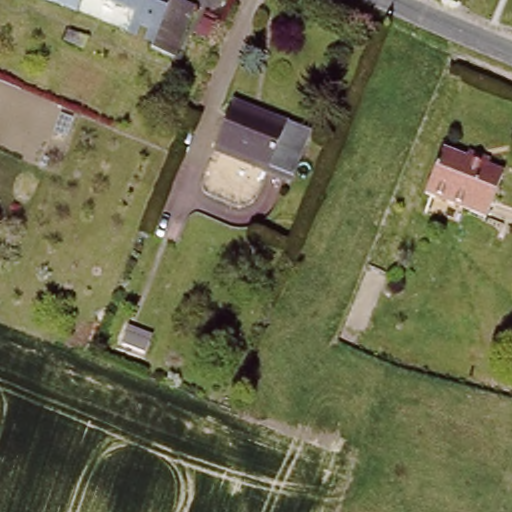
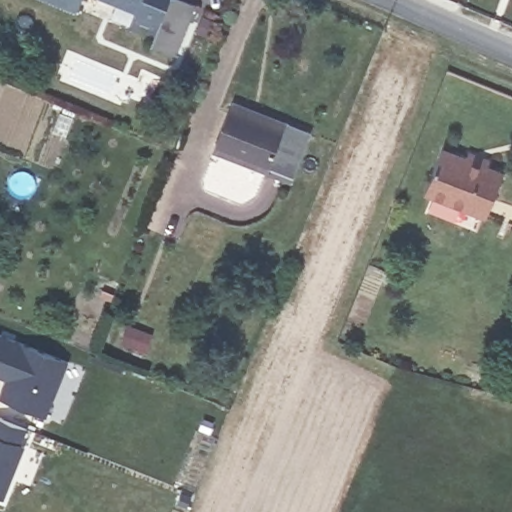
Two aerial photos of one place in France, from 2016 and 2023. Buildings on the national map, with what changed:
unchanged [(49,0),(80,0),(75,12),(49,0)]
unchanged [(109,0),(120,0),(118,4),(109,0)]
unchanged [(172,0),(157,41),(129,30),(135,11),(118,4),(120,0),(172,0)]
unchanged [(178,0),(197,7),(177,57),(153,48),(157,41),(172,0),(178,0)]
unchanged [(214,150),(231,108),(310,137),(293,179),(214,150)]
unchanged [(425,191),(440,148),(479,164),(462,206),(425,191)]
unchanged [(479,164),(503,172),(486,216),(462,206),(479,164)]
new [(0,400),(0,394),(5,378),(0,376),(0,336),(68,364),(47,417),(0,400)]
new [(25,448),(5,500),(0,498),(0,417),(27,430),(19,447),(25,448)]

